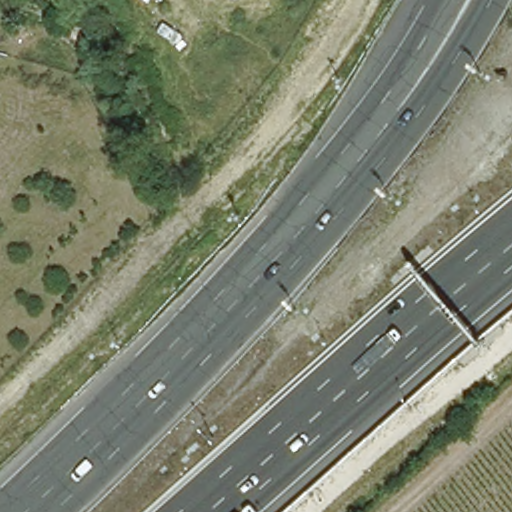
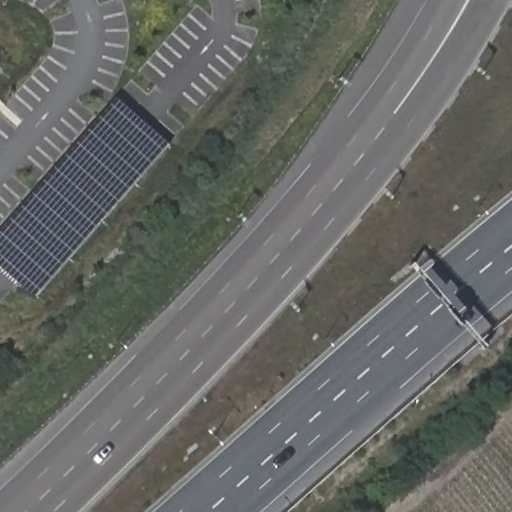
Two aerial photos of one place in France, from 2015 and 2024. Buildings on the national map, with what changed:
new [(170,145),(36,298),(0,267),(0,228),(116,97),(170,145)]

